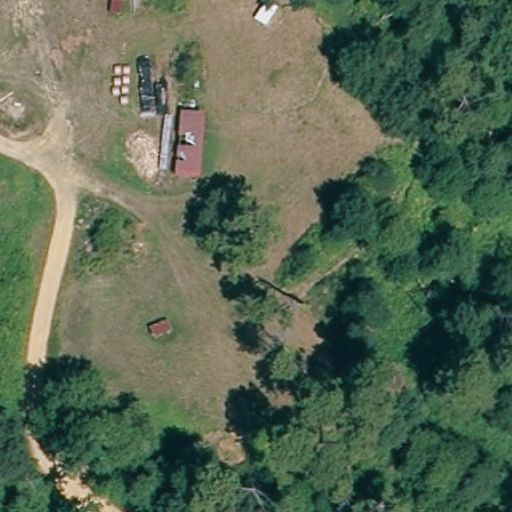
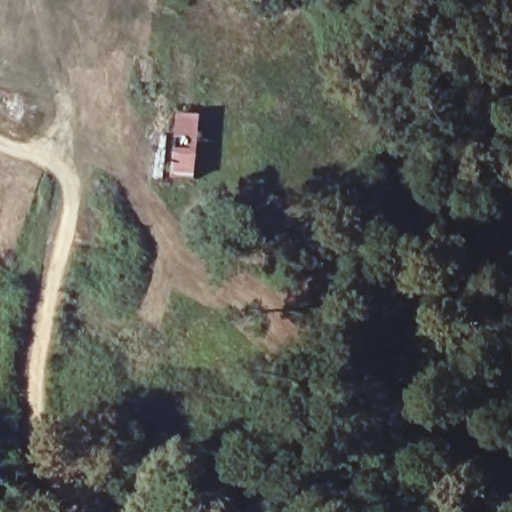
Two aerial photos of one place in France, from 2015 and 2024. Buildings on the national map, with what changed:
unchanged [(196,180),(171,179),(176,115),(199,117),(196,180)]

